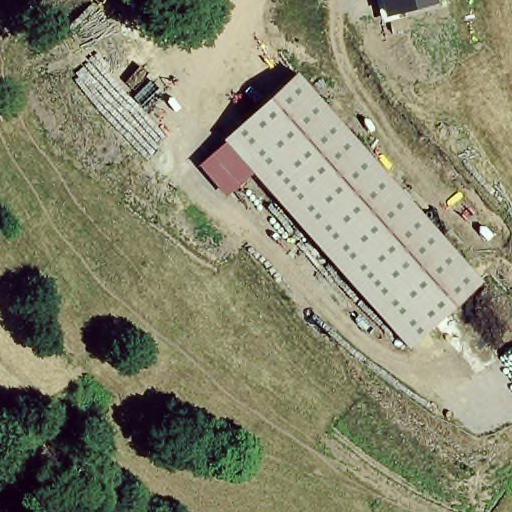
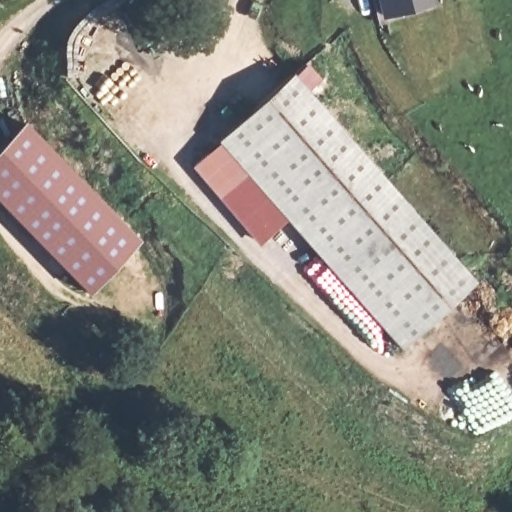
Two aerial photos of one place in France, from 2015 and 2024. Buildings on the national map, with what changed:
new [(435,5),(379,17),(374,0),(433,0),(435,5)]
unchanged [(295,76),(477,283),(407,351),(218,142),(295,76)]
new [(0,205),(0,147),(25,122),(141,241),(87,293),(0,205)]
unchanged [(248,175),(227,190),(217,197),(192,166),(197,162),(220,144),(248,175)]

